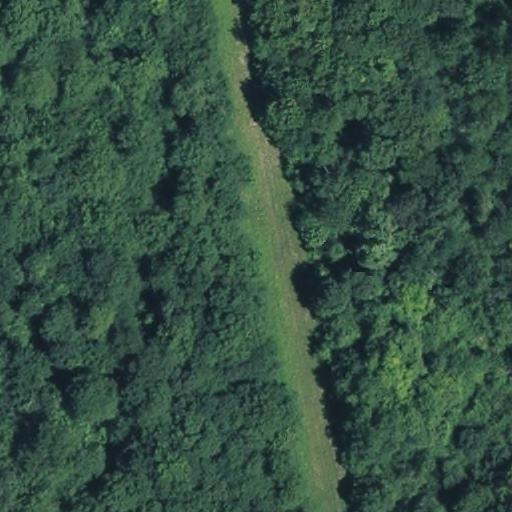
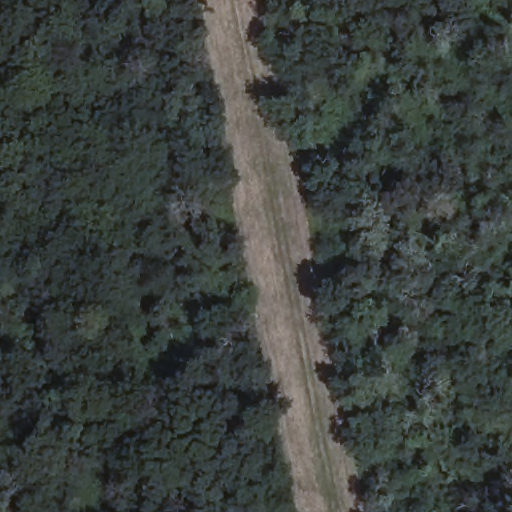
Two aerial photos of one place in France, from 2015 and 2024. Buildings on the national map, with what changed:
unchanged [(438,243),(427,267),(386,256),(397,228),(438,243)]

